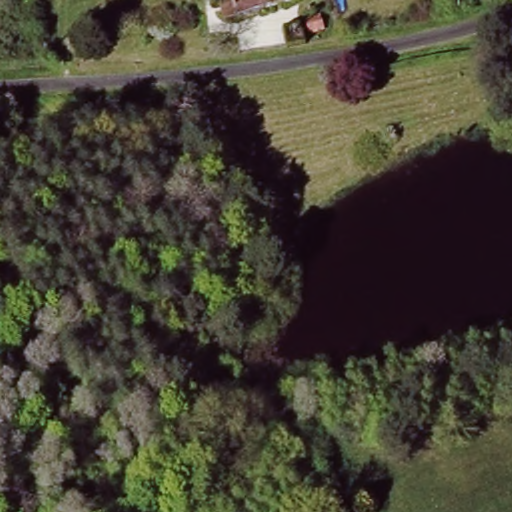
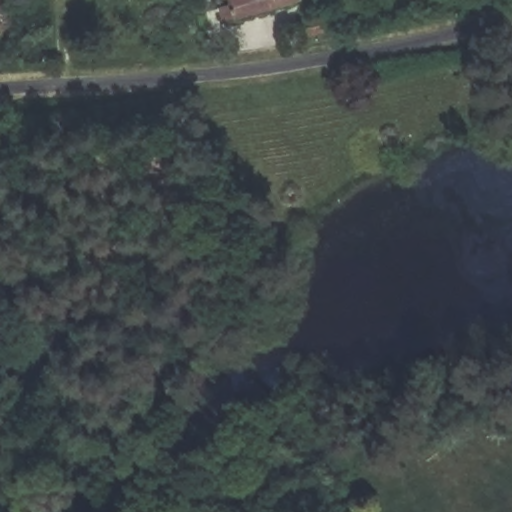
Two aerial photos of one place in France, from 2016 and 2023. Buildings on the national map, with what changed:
unchanged [(220,29),(213,7),(225,3),(224,0),(303,0),(303,3),(220,29)]
unchanged [(318,14),(322,28),(300,35),(295,21),(318,14)]

